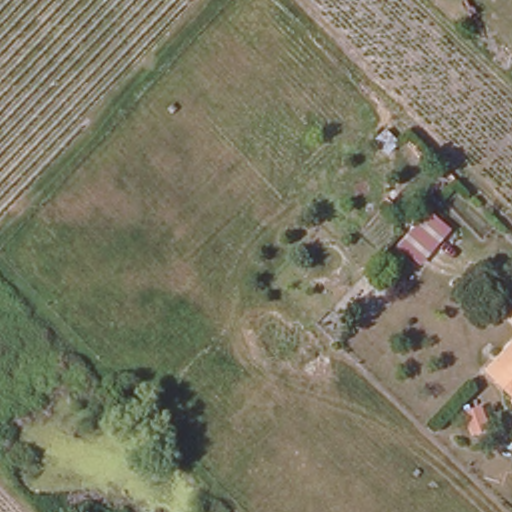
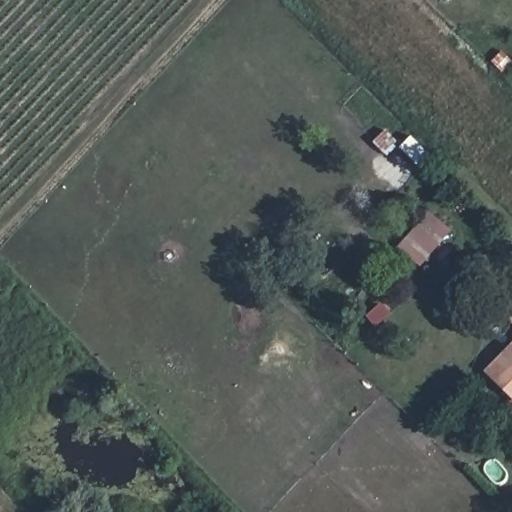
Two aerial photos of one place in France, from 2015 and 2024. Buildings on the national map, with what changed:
unchanged [(431,262),(422,253),(418,258),(408,247),(429,220),(453,241),(431,262)]
unchanged [(482,380),(512,344),(512,404),(482,380)]

